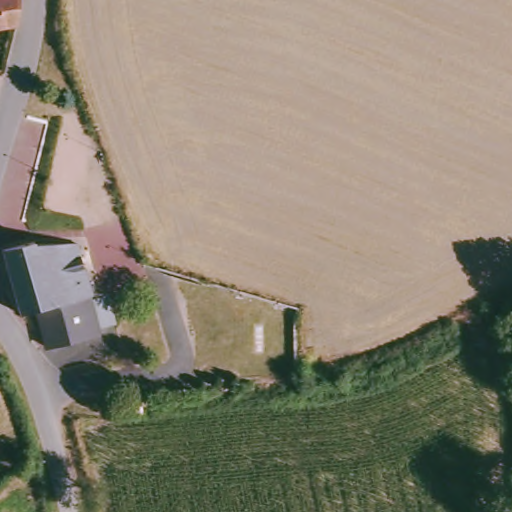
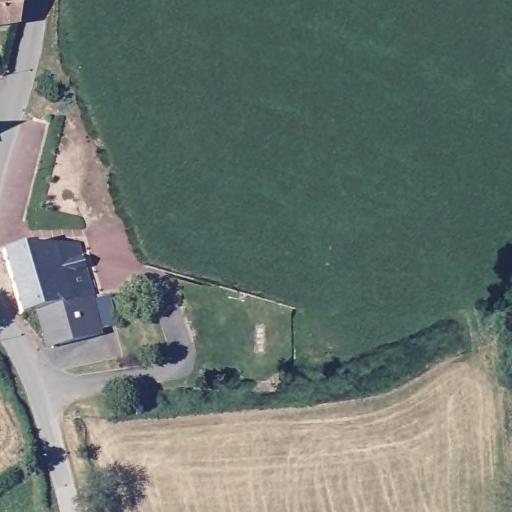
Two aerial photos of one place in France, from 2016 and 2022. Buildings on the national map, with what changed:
unchanged [(0,32),(0,0),(25,0),(22,28),(0,32)]
unchanged [(120,321),(101,325),(102,329),(55,339),(45,305),(30,310),(10,248),(42,240),(43,243),(46,243),(85,242),(85,244),(97,292),(94,292),(95,296),(113,292),(120,321)]

